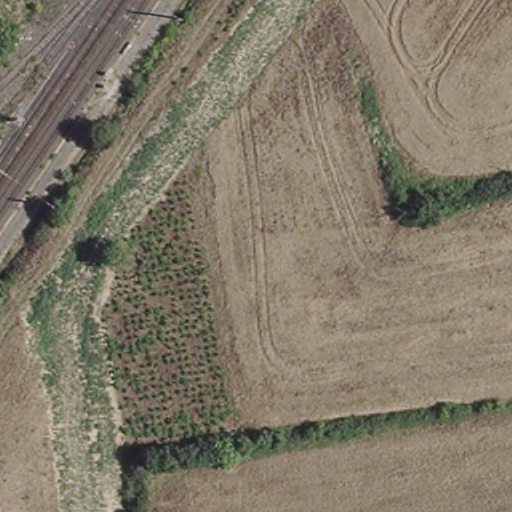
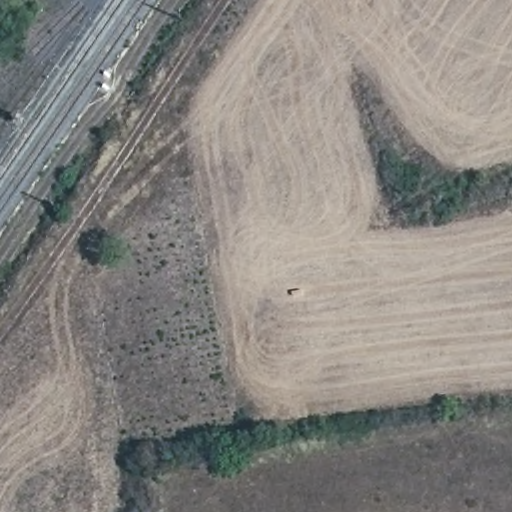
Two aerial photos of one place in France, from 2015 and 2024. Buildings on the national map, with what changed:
[]

